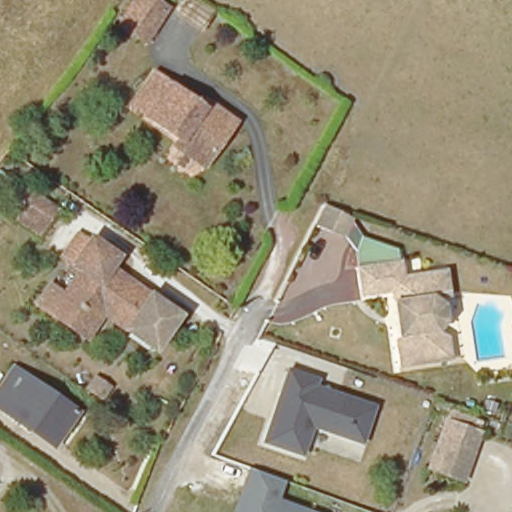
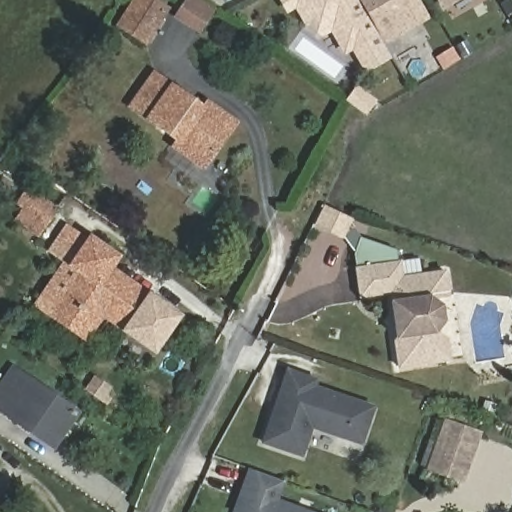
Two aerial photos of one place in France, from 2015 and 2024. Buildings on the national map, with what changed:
unchanged [(141,40),(119,25),(135,0),(156,0),(164,5),(141,40)]
new [(187,0),(202,0),(218,10),(204,32),(177,16),(187,0)]
new [(385,43),(395,57),(368,72),(362,69),(352,51),(344,55),(332,34),(323,39),(303,25),(296,9),(287,15),(279,0),(419,0),(428,17),(385,43)]
new [(443,10),(438,0),(461,0),(443,10)]
unchanged [(213,107),(241,127),(209,172),(179,151),(184,145),(153,123),(136,111),(160,78),(176,90),(209,114),(213,107)]
unchanged [(35,194),(58,209),(42,230),(21,215),(35,194)]
unchanged [(352,219),(344,237),(321,226),(330,208),(352,219)]
unchanged [(124,261),(116,272),(184,320),(160,355),(109,320),(91,344),(41,309),(55,290),(68,300),(84,275),(48,252),(75,223),(124,261)]
unchanged [(401,265),(404,264),(406,280),(406,284),(426,281),(426,277),(449,274),(452,297),(434,300),(445,306),(448,324),(439,335),(450,340),(453,363),(402,370),(399,343),(401,340),(395,295),(365,299),(360,271),(341,264),(351,235),(365,240),(400,253),(401,265)]
unchanged [(365,445),(315,429),(304,458),(263,444),(288,368),(321,378),(318,386),(378,405),(365,445)]
unchanged [(30,431),(0,411),(0,400),(15,379),(19,373),(48,393),(83,417),(64,445),(35,425),(30,431)]
unchanged [(463,480),(432,468),(448,425),(478,436),(463,480)]
unchanged [(287,480),(280,501),(312,512),(236,512),(251,467),(287,480)]

